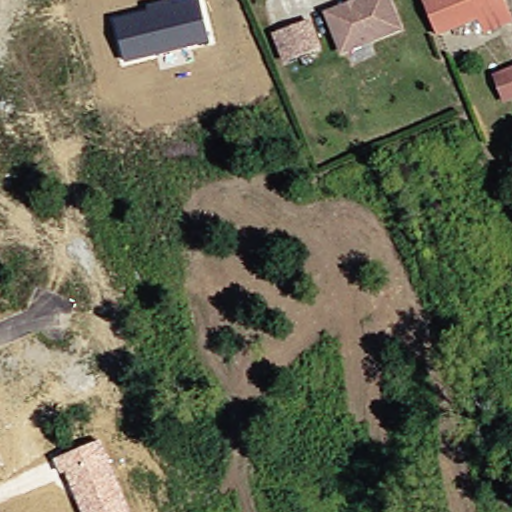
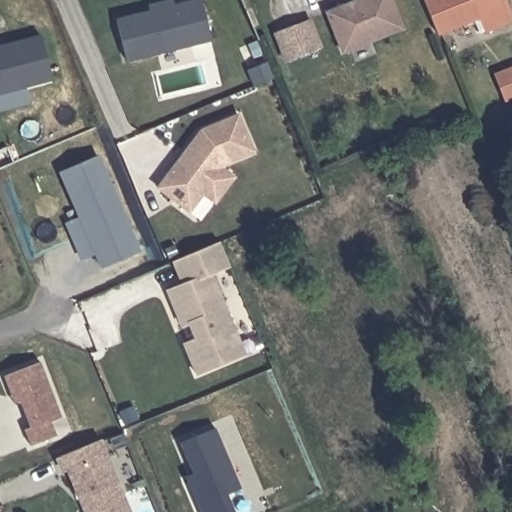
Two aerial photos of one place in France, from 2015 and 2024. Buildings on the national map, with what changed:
unchanged [(126,64),(113,17),(149,10),(147,5),(169,0),(173,0),(175,3),(188,0),(200,0),(211,43),(126,64)]
unchanged [(391,0),(403,29),(347,54),(331,15),(364,0),(391,0)]
unchanged [(475,30),(470,19),(429,35),(415,0),(498,0),(506,18),(475,30)]
unchanged [(307,27),(319,55),(287,69),(275,41),(307,27)]
new [(53,81),(0,95),(0,45),(41,35),(53,81)]
unchanged [(484,77),(502,70),(512,66),(512,97),(511,95),(494,101),(484,77)]
new [(218,201),(207,193),(192,211),(162,186),(206,130),(241,114),(257,151),(231,162),(226,167),(237,177),(218,201)]
new [(95,254),(82,260),(66,223),(79,217),(59,172),(97,155),(139,252),(101,268),(95,254)]
new [(232,362),(200,375),(187,345),(198,340),(192,325),(185,328),(170,291),(185,285),(176,262),(222,243),(232,266),(214,275),(242,343),(247,355),(232,362)]
new [(63,417),(52,421),(57,435),(32,445),(26,430),(32,427),(21,402),(16,405),(12,395),(5,375),(41,362),(63,417)]
new [(243,487),(229,493),(237,512),(204,512),(191,484),(188,476),(195,473),(182,442),(217,428),(243,487)]
unchanged [(133,512),(81,512),(65,473),(61,475),(54,459),(101,439),(133,512)]

